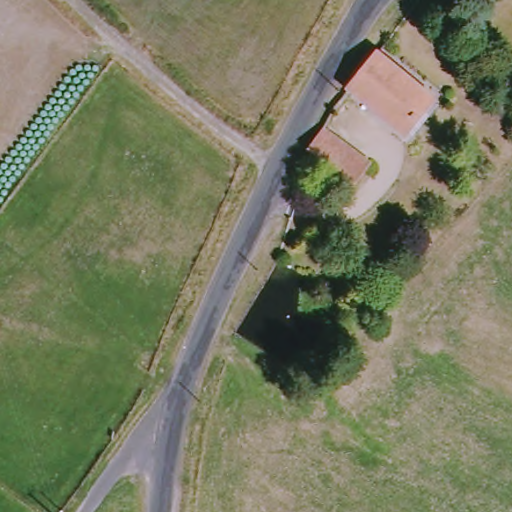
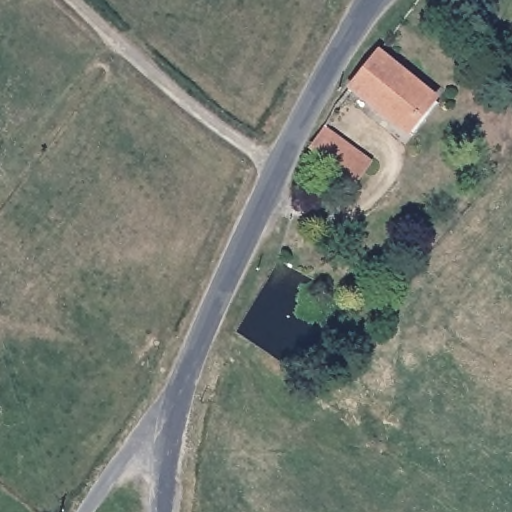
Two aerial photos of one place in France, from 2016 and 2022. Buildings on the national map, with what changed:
unchanged [(447,99),(415,140),(375,112),(352,145),(375,159),(364,176),(325,152),(319,149),(351,97),(387,54),(447,99)]

